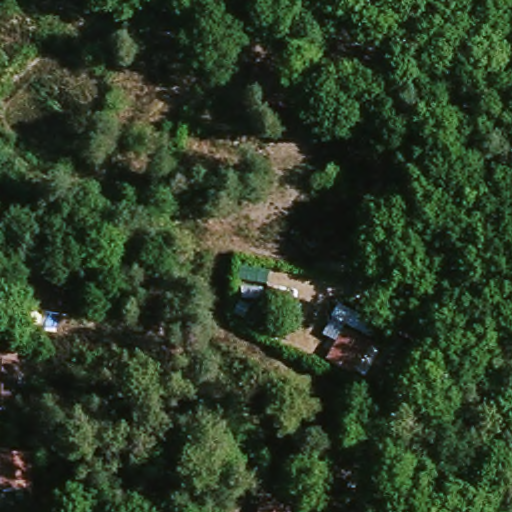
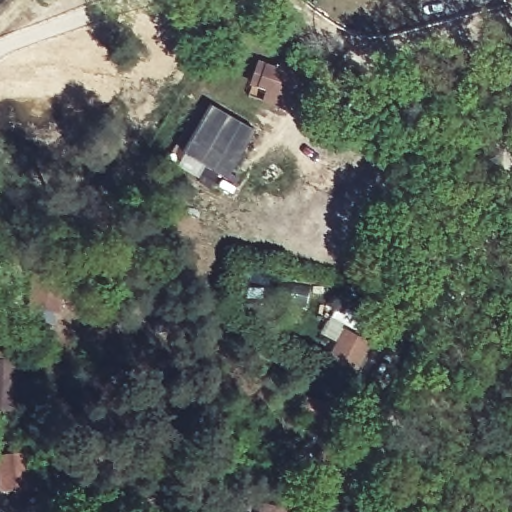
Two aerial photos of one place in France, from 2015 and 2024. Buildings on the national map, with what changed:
new [(287,100),(254,87),(261,62),(276,69),(281,62),(302,67),(287,100)]
demolished [(262,81),(275,81),(282,81),(283,118),(268,119),(262,119),(262,81)]
new [(210,107),(257,132),(231,180),(183,155),(210,107)]
demolished [(225,181),(234,145),(252,150),(243,186),(225,181)]
unchanged [(70,327),(45,325),(46,286),(71,287),(70,327)]
unchanged [(329,368),(345,332),(370,344),(353,380),(329,368)]
unchanged [(11,410),(0,410),(0,359),(10,359),(11,410)]
unchanged [(27,494),(1,493),(2,458),(27,458),(27,494)]
unchanged [(363,506),(337,500),(345,463),(371,469),(363,506)]
unchanged [(286,512),(258,512),(258,504),(286,506),(286,512)]

